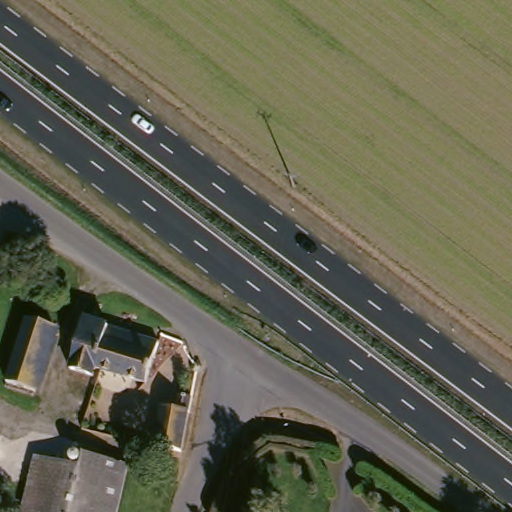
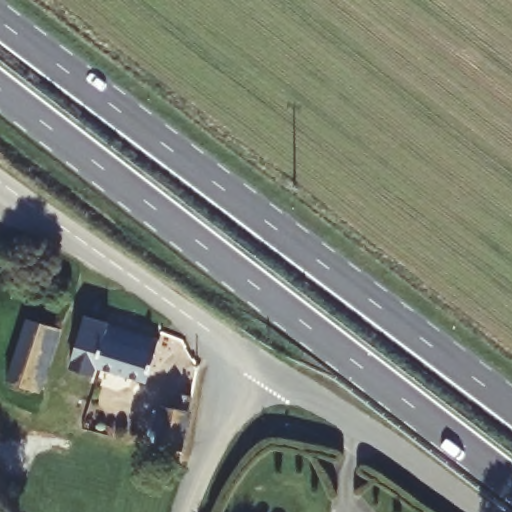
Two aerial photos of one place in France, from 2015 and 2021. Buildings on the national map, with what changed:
unchanged [(56,304),(25,288),(9,279),(16,263),(32,270),(33,268),(66,286),(56,304)]
unchanged [(148,383),(98,368),(96,376),(71,368),(86,319),(161,341),(148,383)]
unchanged [(36,391),(6,382),(27,320),(56,329),(36,391)]
unchanged [(146,446),(152,408),(166,410),(168,395),(183,397),(173,453),(146,446)]
demolished [(81,467),(83,455),(130,465),(119,512),(22,512),(35,456),(81,467)]

